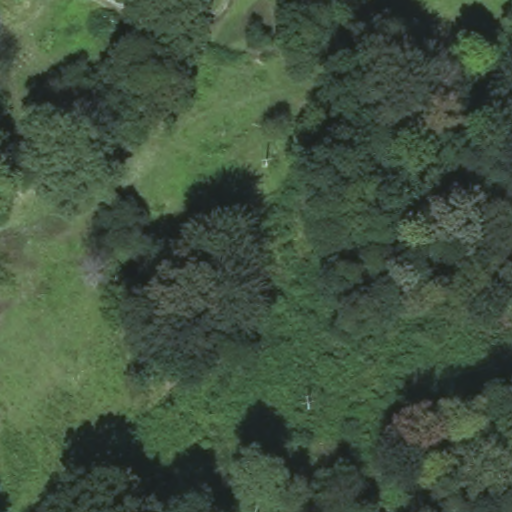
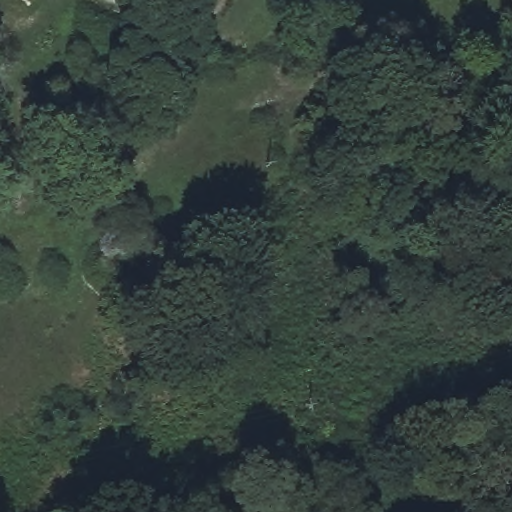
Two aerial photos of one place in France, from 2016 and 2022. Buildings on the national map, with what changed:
[]

